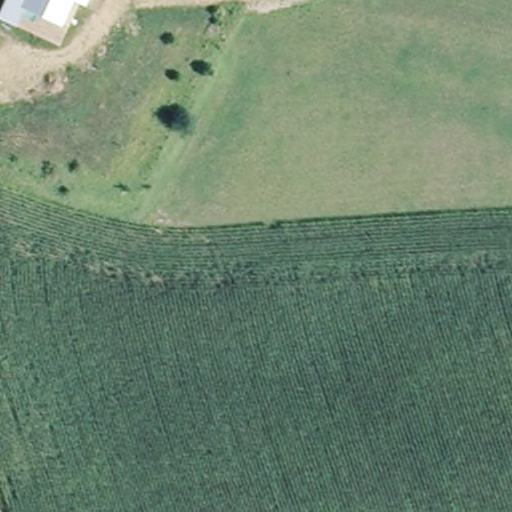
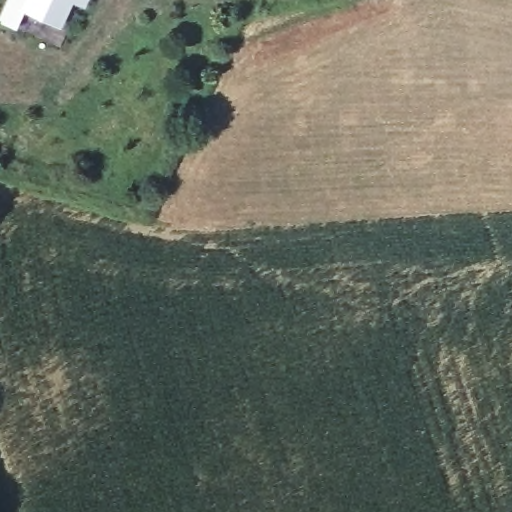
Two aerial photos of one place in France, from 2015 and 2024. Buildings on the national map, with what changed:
unchanged [(27,5),(28,2),(24,0),(72,0),(60,23),(27,5)]

